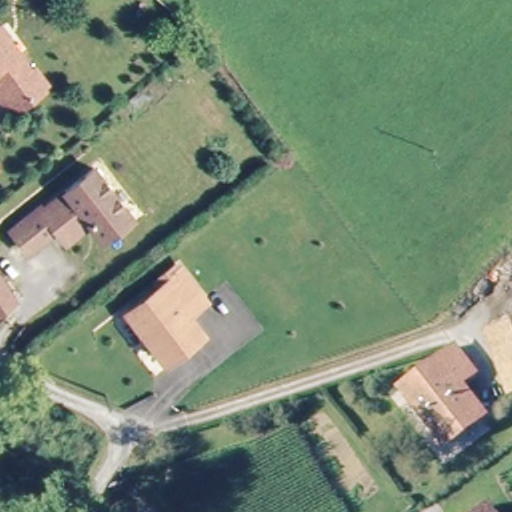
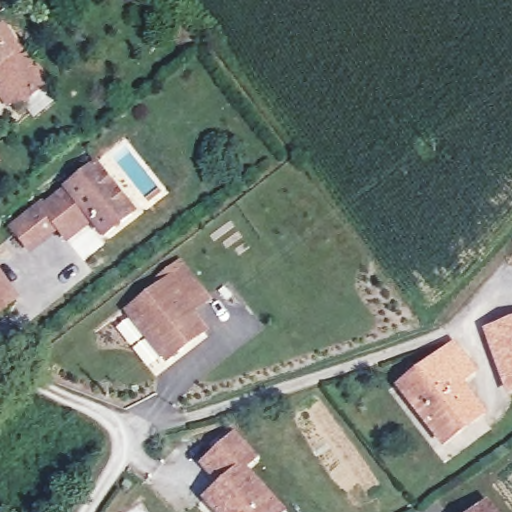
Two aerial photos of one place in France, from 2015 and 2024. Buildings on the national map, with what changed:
unchanged [(47,81),(18,109),(0,89),(0,58),(6,53),(7,55),(17,45),(47,81)]
unchanged [(6,53),(0,58),(0,46),(6,53)]
unchanged [(91,226),(66,245),(55,232),(28,254),(11,232),(39,210),(42,214),(94,173),(132,220),(103,242),(91,226)]
unchanged [(126,316),(163,288),(158,282),(175,269),(202,302),(185,315),(200,333),(162,362),(126,316)]
unchanged [(20,300),(0,314),(0,270),(20,300)]
unchanged [(512,331),(512,393),(503,395),(485,340),(512,331)]
unchanged [(402,383),(455,347),(472,372),(457,381),(478,414),(442,437),(402,383)]
new [(201,502),(217,487),(199,465),(236,434),(261,461),(248,472),(284,512),(209,512),(201,502)]

